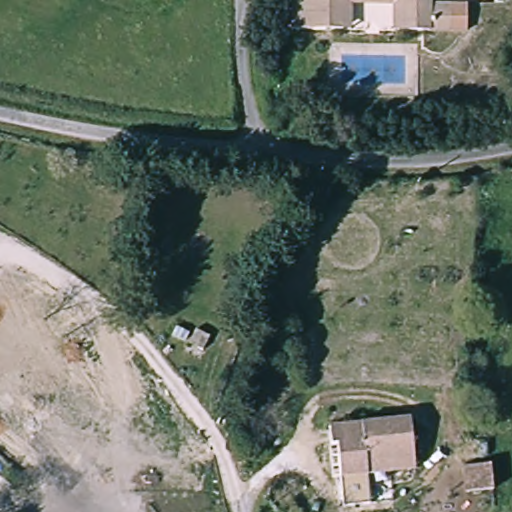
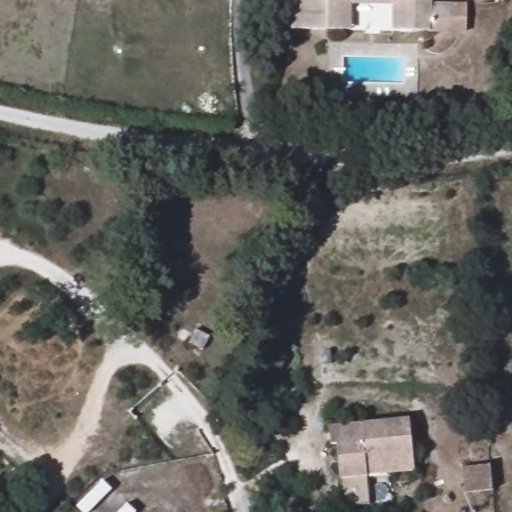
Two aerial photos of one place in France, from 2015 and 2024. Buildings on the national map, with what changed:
unchanged [(425,5),(447,7),(448,35),(398,32),(398,2),(343,1),(340,31),(290,26),(292,1),(313,2),(313,0),(425,0),(425,5)]
unchanged [(357,469),(358,478),(337,481),(333,443),(323,445),(323,429),(401,419),(411,460),(357,469)]
unchanged [(457,500),(455,473),(483,470),(486,496),(457,500)]

